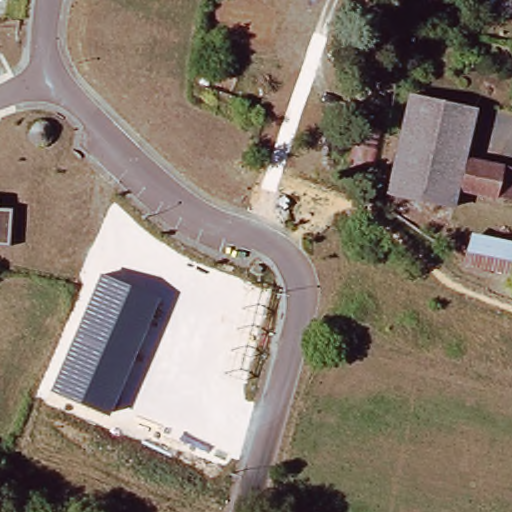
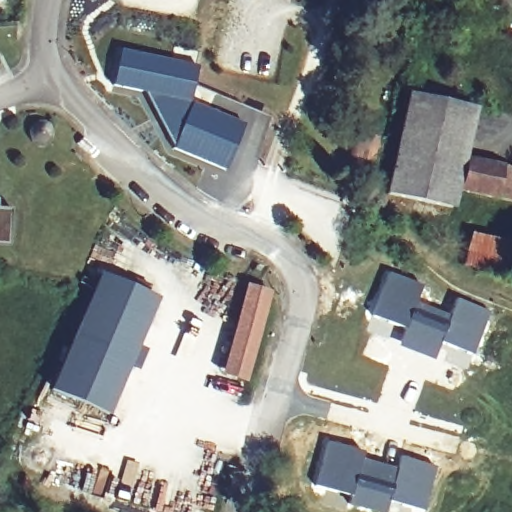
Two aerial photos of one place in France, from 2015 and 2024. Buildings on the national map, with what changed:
unchanged [(8,0),(7,1),(0,1),(0,0),(8,0)]
new [(243,125),(225,170),(172,149),(145,95),(111,86),(119,51),(196,68),(190,103),(243,125)]
unchanged [(469,111),(448,206),(390,194),(410,99),(469,111)]
unchanged [(496,198),(458,190),(465,157),(503,165),(512,167),(512,193),(510,200),(496,198)]
unchanged [(10,210),(10,245),(0,244),(0,209),(10,210)]
unchanged [(471,234),(512,243),(512,277),(465,266),(471,234)]
new [(387,271),(420,285),(415,302),(403,330),(370,315),(387,271)]
unchanged [(160,300),(110,417),(49,393),(99,274),(160,300)]
new [(271,293),(246,382),(221,375),(245,285),(271,293)]
new [(448,315),(455,295),(490,310),(472,355),(440,343),(448,315)]
new [(403,330),(415,302),(448,315),(440,343),(432,361),(396,347),(403,330)]
new [(327,441),(365,452),(363,457),(349,497),(313,485),(327,441)]
new [(395,467),(398,453),(436,464),(422,512),(387,503),(395,467)]
new [(349,497),(363,457),(395,467),(387,503),(386,512),(377,512),(347,505),(349,497)]

